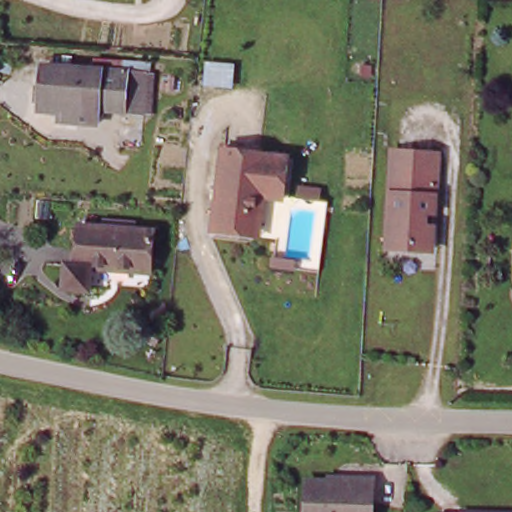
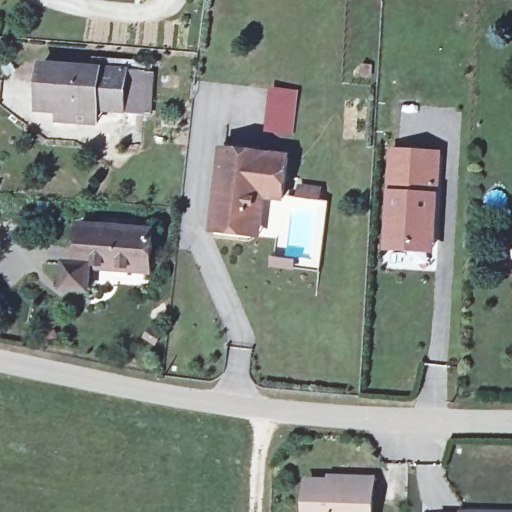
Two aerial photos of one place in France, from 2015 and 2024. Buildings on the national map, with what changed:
unchanged [(63,110),(33,107),(37,66),(140,75),(133,116),(94,113),(93,124),(61,121),(63,110)]
new [(293,135),(264,131),(270,87),(299,91),(293,135)]
unchanged [(247,233),(216,229),(229,148),(294,156),(288,198),(269,195),(263,235),(247,233)]
unchanged [(413,247),(391,246),(393,220),(398,221),(399,212),(394,211),(399,150),(442,153),(435,242),(434,248),(413,247)]
unchanged [(61,271),(70,270),(76,231),(150,238),(144,275),(95,271),(95,275),(87,273),(84,298),(60,295),(61,271)]
unchanged [(305,512),(308,478),(371,482),(369,512),(305,512)]
unchanged [(481,512),(473,512),(473,511),(481,512)]

